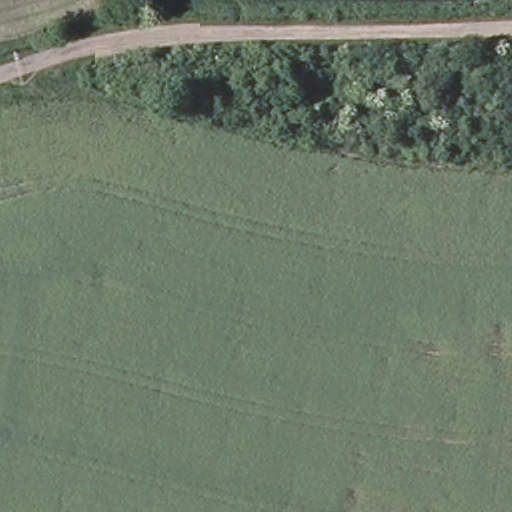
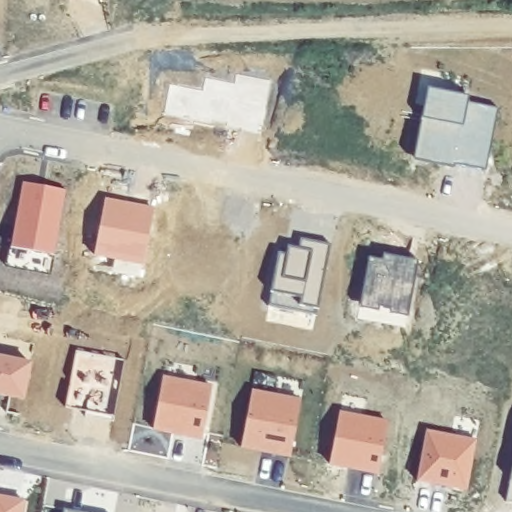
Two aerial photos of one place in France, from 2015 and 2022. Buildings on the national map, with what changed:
new [(204,93),(207,80),(235,85),(236,76),(270,81),(261,132),(165,115),(170,86),(204,93)]
new [(470,95),(468,101),(497,108),(487,170),(455,164),(455,168),(413,159),(428,85),(470,95)]
new [(19,174),(62,183),(50,248),(47,267),(3,260),(7,240),(19,174)]
new [(151,210),(143,262),(97,254),(107,200),(151,210)]
new [(330,245),(318,307),(302,304),(302,295),(272,290),(279,251),(288,253),(288,246),(301,247),(302,239),(330,245)]
new [(416,261),(408,314),(390,311),(390,307),(379,303),(378,308),(361,306),(370,257),(382,258),(385,254),(416,261)]
new [(27,354),(20,390),(0,386),(0,349),(27,354)]
new [(123,361),(115,416),(65,407),(76,352),(123,361)]
new [(210,387),(200,437),(172,433),(168,460),(129,452),(134,425),(156,428),(165,379),(210,387)]
new [(300,400),(290,455),(244,447),(255,392),(300,400)]
new [(387,421),(378,473),(332,463),(342,412),(387,421)]
new [(474,442),(467,489),(418,479),(427,432),(474,442)]
new [(512,470),(512,501),(506,500),(512,470)]
new [(25,502),(24,512),(0,512),(0,496),(25,502)]
new [(76,512),(66,512),(66,510),(76,512)]

